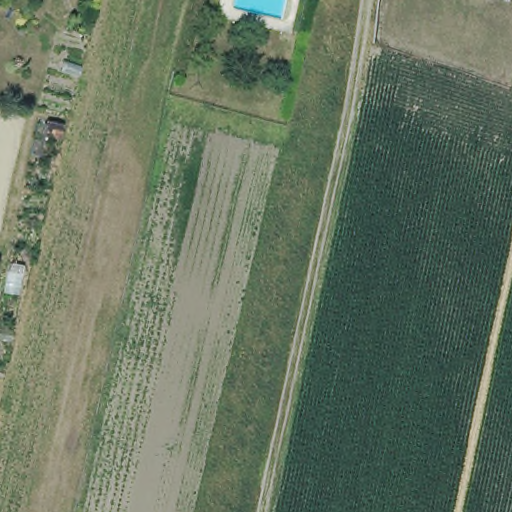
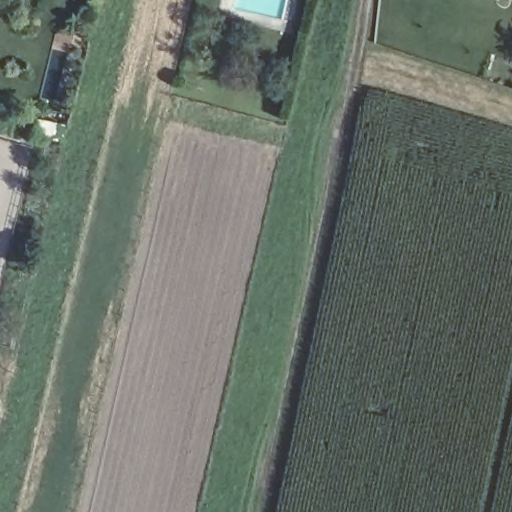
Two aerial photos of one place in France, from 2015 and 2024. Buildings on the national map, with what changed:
unchanged [(62,141),(34,137),(37,121),(65,126),(62,141)]

